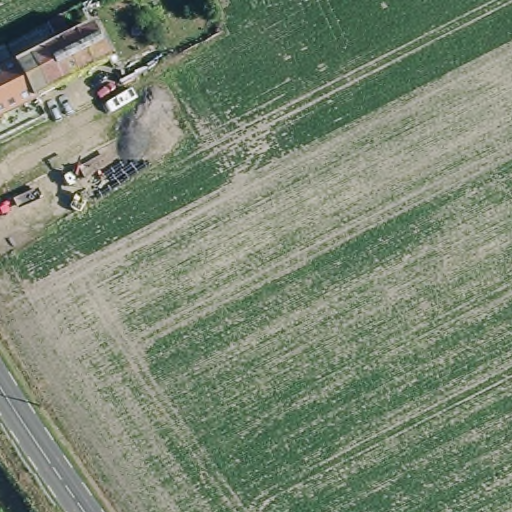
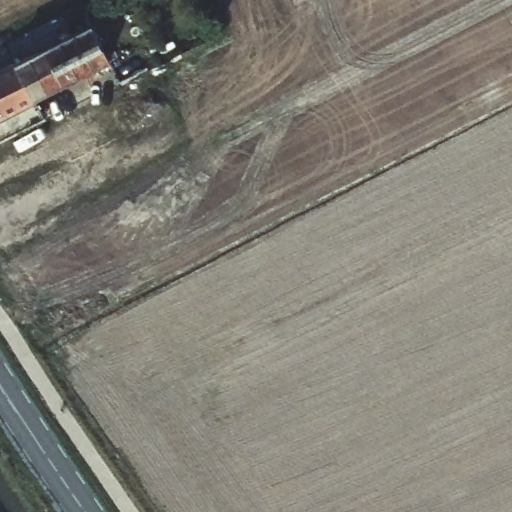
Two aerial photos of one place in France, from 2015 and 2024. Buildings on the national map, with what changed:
unchanged [(31,97),(40,113),(0,134),(0,70),(84,24),(102,57),(31,97)]

